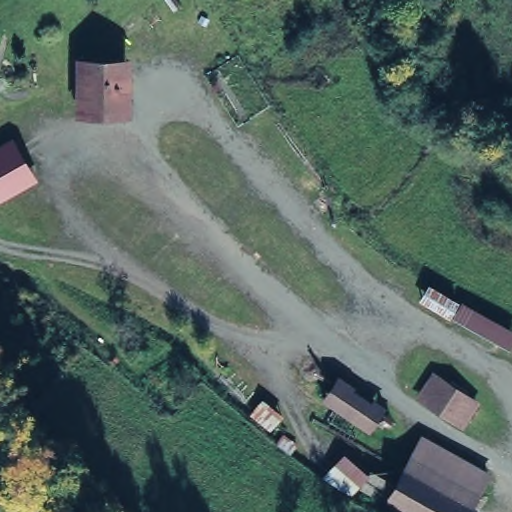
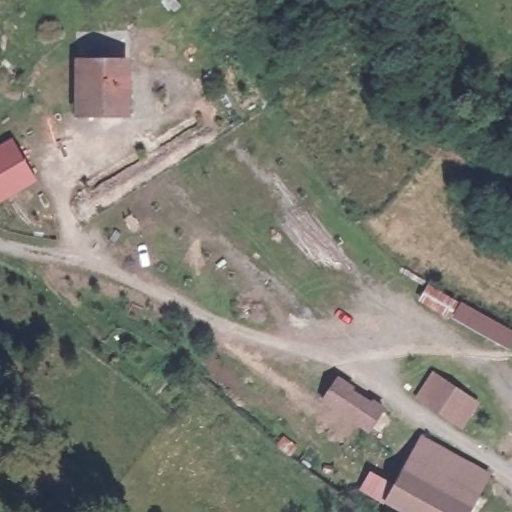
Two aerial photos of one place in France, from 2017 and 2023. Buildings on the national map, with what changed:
unchanged [(115,105),(77,105),(78,62),(91,62),(117,64),(115,90),(115,105)]
unchanged [(13,136),(37,181),(0,203),(0,144),(13,136)]
unchanged [(511,330),(504,344),(462,320),(469,306),(511,330)]
unchanged [(472,403),(459,426),(412,396),(426,373),(472,403)]
unchanged [(333,381),(381,410),(375,420),(368,431),(319,400),(326,390),(333,381)]
unchanged [(477,491),(411,458),(416,447),(419,441),(486,475),(480,485),(477,491)]
unchanged [(411,458),(477,491),(467,512),(401,512),(388,505),(411,458)]
unchanged [(368,476),(391,487),(383,503),(360,490),(368,476)]

